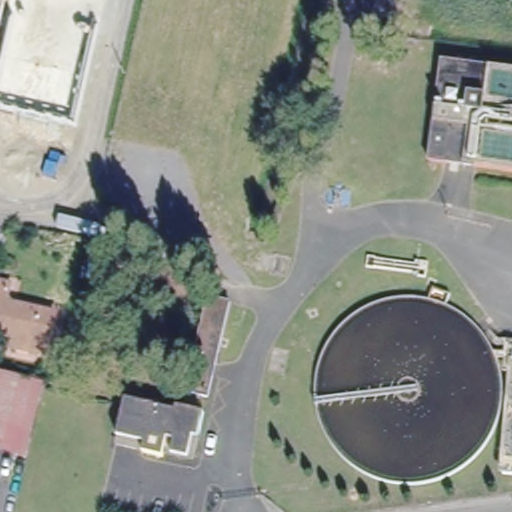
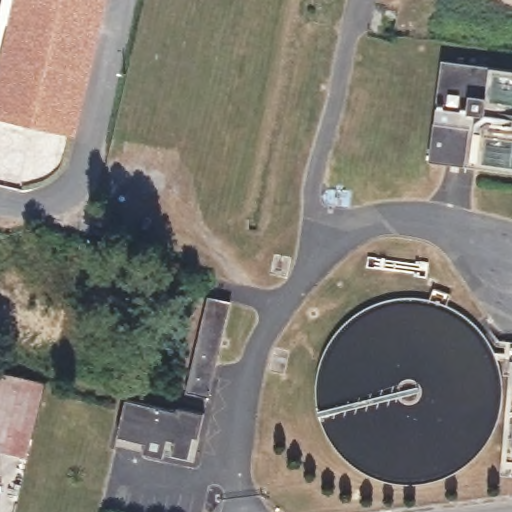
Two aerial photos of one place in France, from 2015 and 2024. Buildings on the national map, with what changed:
new [(75,134),(0,118),(0,75),(17,0),(106,0),(75,134)]
demolished [(91,10),(56,3),(57,0),(93,0),(91,10)]
unchanged [(512,173),(435,169),(441,69),(512,73),(512,173)]
unchanged [(11,304),(58,314),(51,353),(0,343),(0,318),(1,312),(0,312),(0,283),(13,286),(11,304)]
new [(209,299),(229,304),(207,397),(188,392),(209,299)]
unchanged [(511,350),(512,350),(512,360),(510,360),(511,350)]
unchanged [(34,385),(35,386),(44,388),(30,437),(25,436),(21,435),(0,428),(0,376),(34,385)]
unchanged [(512,390),(512,481),(506,481),(512,390)]
unchanged [(162,459),(140,454),(143,444),(117,439),(125,402),(175,413),(176,408),(204,415),(198,440),(192,466),(162,459)]

